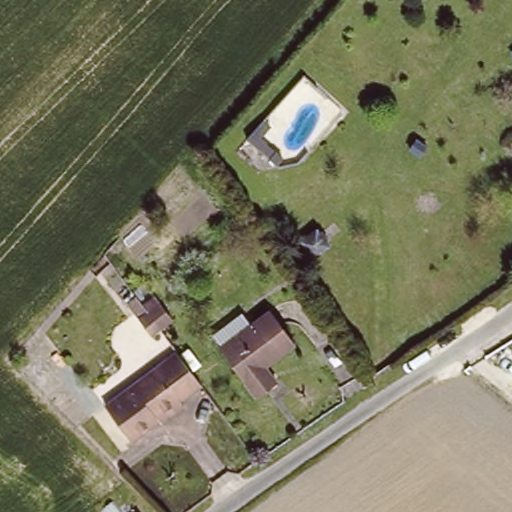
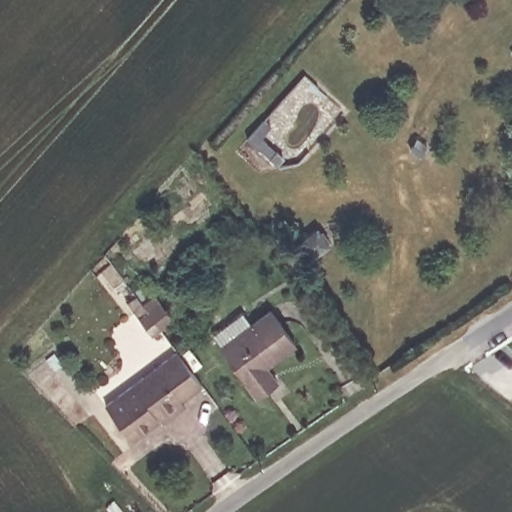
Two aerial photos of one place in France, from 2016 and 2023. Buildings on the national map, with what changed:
unchanged [(312,234),(322,248),(307,259),(297,245),(312,234)]
unchanged [(273,386),(261,395),(222,339),(227,336),(219,325),(250,302),(259,314),(274,303),(300,341),(269,363),(282,381),(273,386)]
unchanged [(139,324),(147,317),(160,308),(174,326),(162,335),(152,342),(139,324)]
unchanged [(162,418),(158,414),(132,434),(106,399),(174,346),(197,377),(179,391),(185,400),(162,418)]

